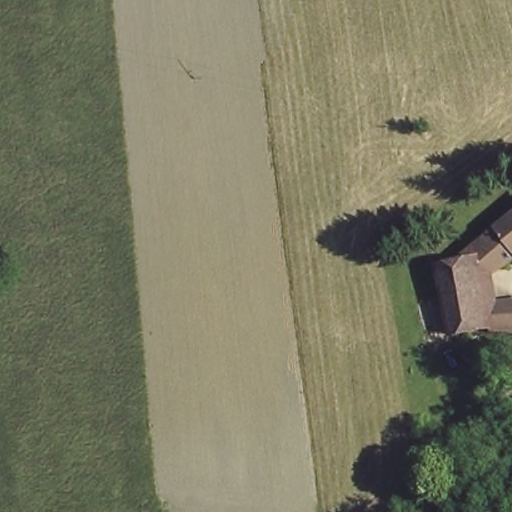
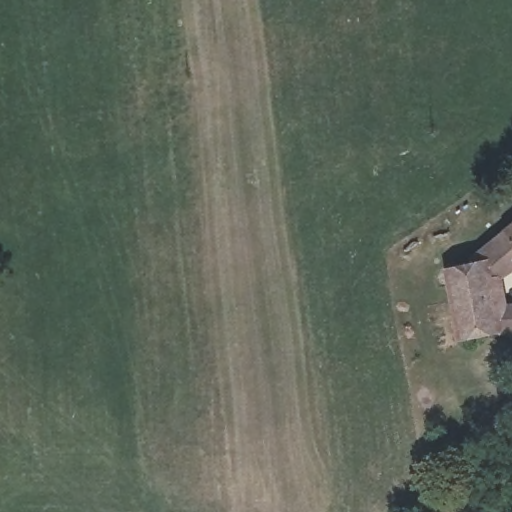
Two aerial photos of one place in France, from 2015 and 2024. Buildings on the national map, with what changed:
unchanged [(486,334),(456,340),(452,315),(445,278),(471,271),(466,256),(472,253),(512,233),(512,278),(483,294),(489,310),(512,311),(512,337),(486,334)]

